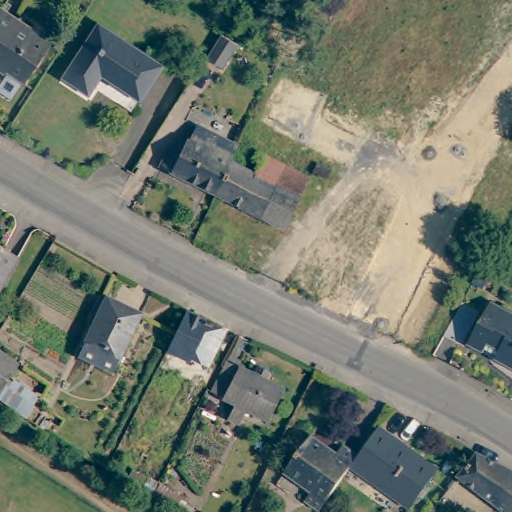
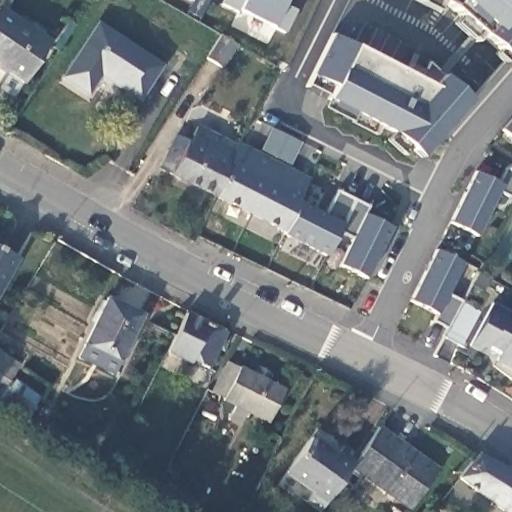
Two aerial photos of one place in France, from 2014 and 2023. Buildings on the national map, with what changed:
new [(512,55),(508,59),(505,63),(496,54),(501,52),(481,34),(475,40),(456,23),(462,16),(451,5),(441,1),(438,9),(418,0),(512,0),(512,55)]
unchanged [(43,36),(5,92),(0,89),(0,7),(43,36)]
unchanged [(161,65),(140,98),(102,75),(90,94),(64,76),(99,24),(161,65)]
unchanged [(236,44),(222,68),(206,58),(220,34),(236,44)]
new [(317,75),(313,74),(331,36),(355,45),(421,79),(428,62),(445,75),(471,101),(421,157),(410,148),(404,154),(389,139),(393,134),(379,127),(376,134),(351,121),(323,107),(327,99),(330,95),(309,84),(317,75)]
new [(512,140),(500,130),(512,118),(512,140)]
unchanged [(229,161),(212,193),(160,166),(170,143),(182,148),(186,140),(190,142),(199,125),(237,145),(229,161)]
unchanged [(212,193),(229,161),(255,174),(265,156),(307,178),(280,229),(212,193)]
demolished [(330,169),(326,178),(313,171),(317,163),(330,169)]
new [(498,182),(505,167),(512,171),(512,198),(500,192),(477,237),(449,222),(476,172),(498,182)]
new [(326,215),(338,191),(368,206),(364,215),(391,228),(365,279),(337,265),(351,237),(338,231),(325,257),(277,233),(280,229),(296,199),(326,215)]
unchanged [(0,289),(0,248),(18,258),(0,289)]
new [(436,250),(463,264),(448,294),(461,300),(446,327),(433,320),(437,315),(410,301),(436,250)]
unchanged [(111,374),(77,356),(107,298),(140,315),(111,374)]
unchanged [(485,311),(465,346),(447,337),(450,333),(467,301),(485,311)]
unchanged [(473,345),(496,303),(512,312),(512,366),(500,359),(502,356),(490,349),(486,353),(473,345)]
unchanged [(185,311),(225,333),(205,370),(166,350),(185,311)]
unchanged [(32,398),(27,406),(32,411),(26,418),(0,399),(0,352),(17,365),(4,389),(10,395),(17,386),(32,398)]
unchanged [(272,427),(251,416),(244,428),(234,423),(240,411),(228,405),(229,403),(217,397),(232,368),(244,374),(245,373),(258,379),(262,372),(275,378),(270,386),(289,395),(272,427)]
unchanged [(390,437),(401,445),(402,443),(437,469),(410,508),(351,465),(358,456),(378,427),(391,436),(390,437)]
unchanged [(304,501),(311,490),(285,471),(310,437),(336,456),(344,446),(358,456),(351,465),(318,511),(304,501)]
unchanged [(157,477),(141,468),(152,452),(167,462),(157,477)]
unchanged [(477,454),(512,473),(512,512),(506,512),(460,476),(477,454)]
unchanged [(125,473),(144,485),(146,479),(156,485),(150,497),(120,479),(125,473)]
unchanged [(180,497),(174,507),(155,495),(161,485),(180,497)]

